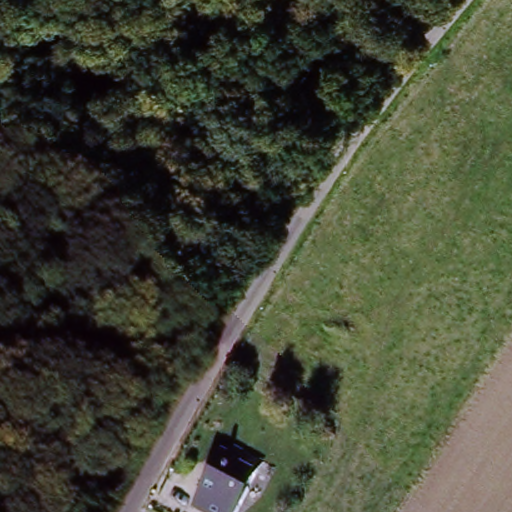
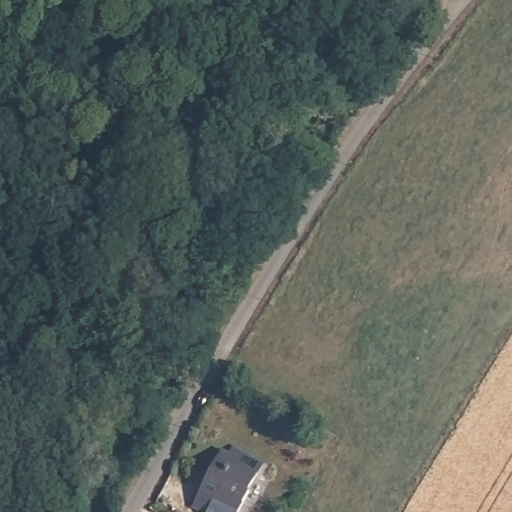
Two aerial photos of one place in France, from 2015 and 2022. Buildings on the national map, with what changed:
unchanged [(242,512),(192,512),(190,511),(222,454),(262,476),(242,512)]

